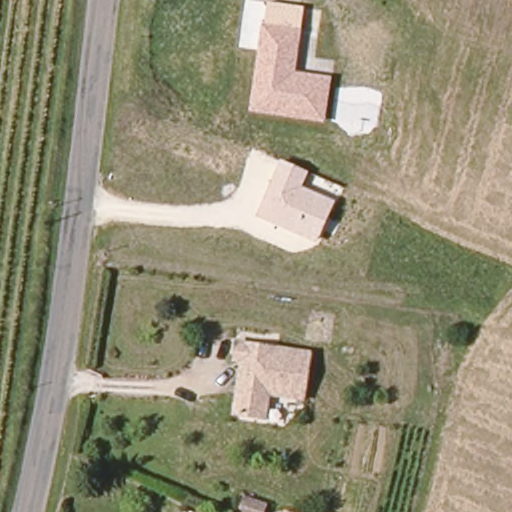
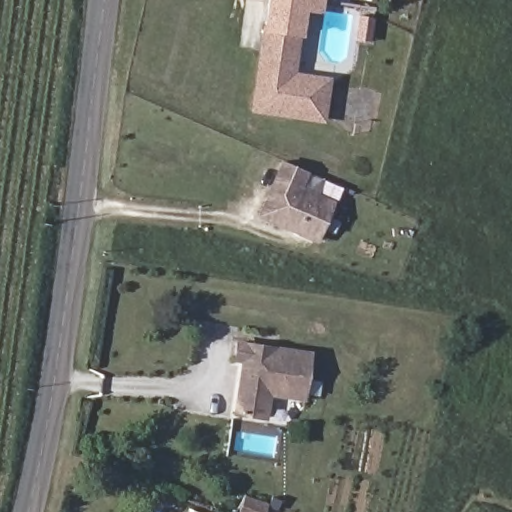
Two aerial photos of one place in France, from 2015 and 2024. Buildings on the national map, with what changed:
unchanged [(295,73),(331,77),(324,123),(249,112),(261,25),(265,25),(267,4),(303,8),(301,30),(295,73)]
unchanged [(316,244),(255,218),(280,160),(309,173),(302,187),(334,202),(316,244)]
unchanged [(239,361),(243,346),(316,360),(307,404),(271,397),(268,419),(238,414),(247,364),(239,361)]
unchanged [(245,503),(263,512),(241,512),(245,503)]

